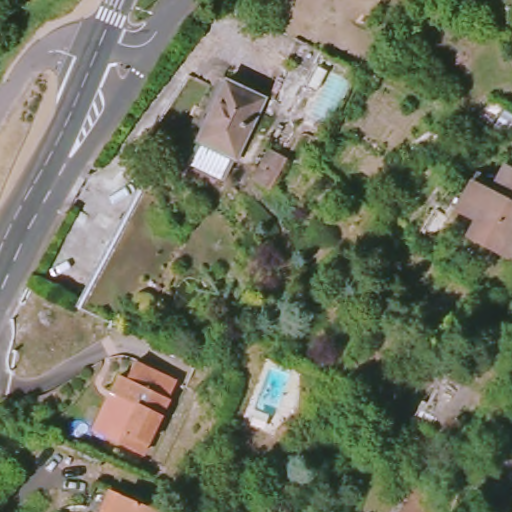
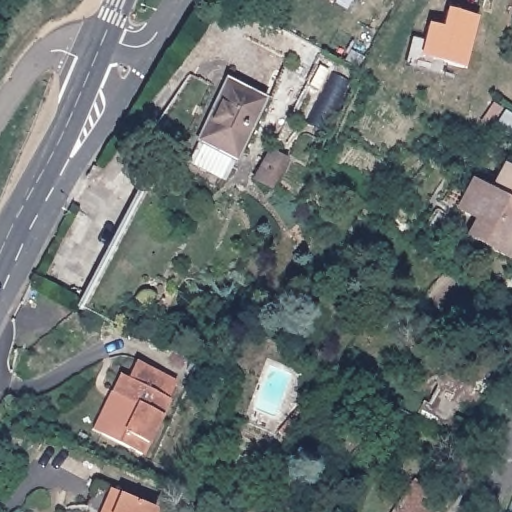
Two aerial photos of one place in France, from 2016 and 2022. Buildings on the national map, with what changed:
new [(429,24),(443,28),(447,10),(476,17),(465,68),(421,57),(429,24)]
unchanged [(262,95),(235,159),(229,157),(220,181),(183,167),(193,141),(190,141),(217,75),(262,95)]
unchanged [(470,171),(492,178),(498,167),(512,174),(512,227),(510,231),(512,232),(512,262),(462,237),(470,220),(451,210),(470,171)]
unchanged [(145,184),(190,209),(148,290),(99,269),(145,184)]
unchanged [(77,310),(99,269),(148,290),(126,332),(77,310)]
unchanged [(115,370),(122,373),(130,357),(171,376),(137,449),(95,429),(88,426),(106,389),(115,370)]
unchanged [(310,420),(290,442),(287,440),(278,432),(300,409),(301,410),(310,420)]
unchanged [(440,503),(434,512),(394,512),(412,484),(440,503)]
unchanged [(91,485),(151,511),(151,512),(85,512),(81,510),(91,485)]

